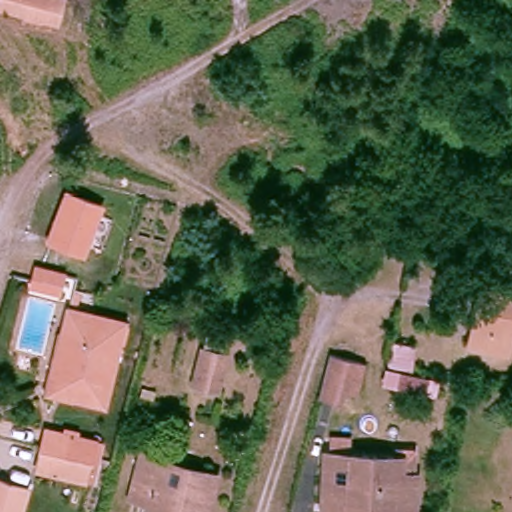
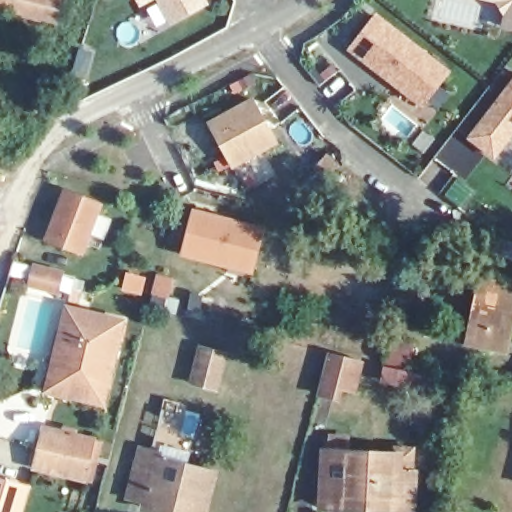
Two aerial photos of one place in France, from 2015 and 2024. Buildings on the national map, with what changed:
unchanged [(57,0),(48,25),(31,20),(0,10),(0,0),(57,0)]
new [(137,0),(152,0),(140,6),(137,0)]
new [(157,0),(206,0),(208,4),(171,24),(157,0)]
new [(505,9),(500,0),(512,0),(512,28),(501,25),(505,9)]
new [(347,49),(377,12),(451,70),(422,105),(347,49)]
new [(512,79),(512,136),(495,159),(467,137),(512,79)]
new [(251,98),(275,141),(232,164),(209,121),(251,98)]
unchanged [(65,190),(101,202),(85,250),(50,239),(65,190)]
new [(227,263),(182,251),(193,209),(261,227),(252,259),(250,269),(227,263)]
unchanged [(37,276),(39,267),(65,273),(63,283),(61,291),(35,285),(37,276)]
unchanged [(512,288),(512,327),(511,336),(508,351),(469,345),(471,330),(478,282),(512,288)]
unchanged [(56,333),(61,307),(116,319),(96,400),(63,393),(41,387),(56,333)]
unchanged [(413,343),(409,367),(387,362),(391,339),(413,343)]
unchanged [(216,389),(191,382),(200,346),(225,352),(216,389)]
unchanged [(352,399),(342,396),(318,391),(328,350),(351,356),(361,359),(352,399)]
unchanged [(45,414),(92,426),(87,447),(39,436),(45,414)]
unchanged [(87,447),(82,469),(34,458),(39,436),(87,447)]
unchanged [(318,508),(324,449),(388,453),(390,441),(411,442),(406,512),(379,512),(340,509),(318,508)]
unchanged [(144,500),(125,496),(134,453),(154,458),(151,468),(210,481),(202,512),(149,512),(140,510),(144,500)]
unchanged [(21,486),(12,512),(0,512),(0,479),(21,486)]

